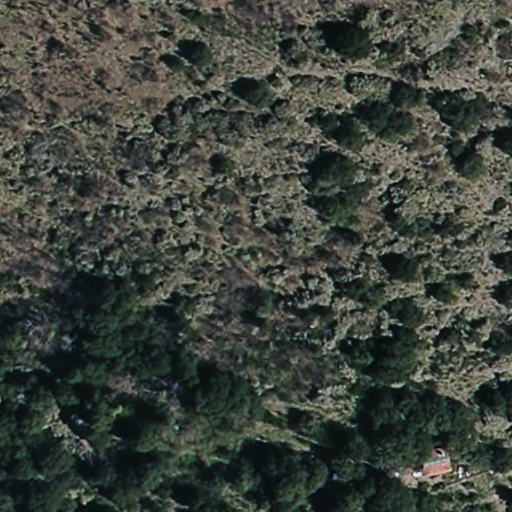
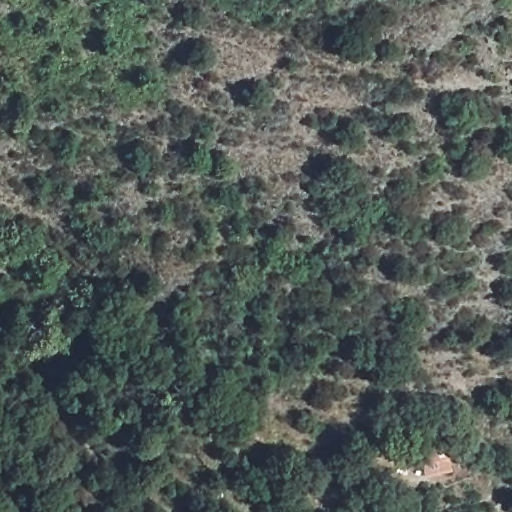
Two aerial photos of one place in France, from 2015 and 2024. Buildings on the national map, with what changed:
unchanged [(417,475),(416,447),(451,447),(452,474),(417,475)]

